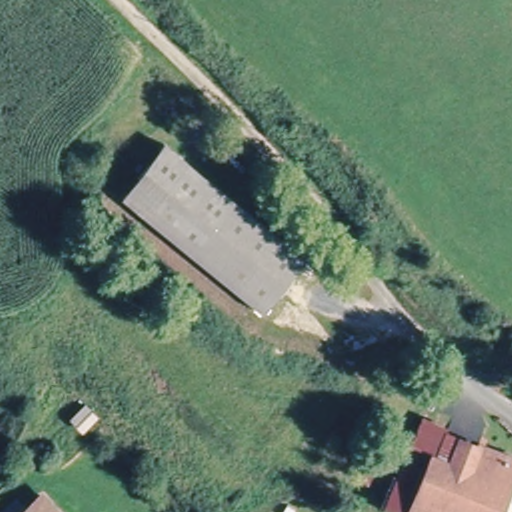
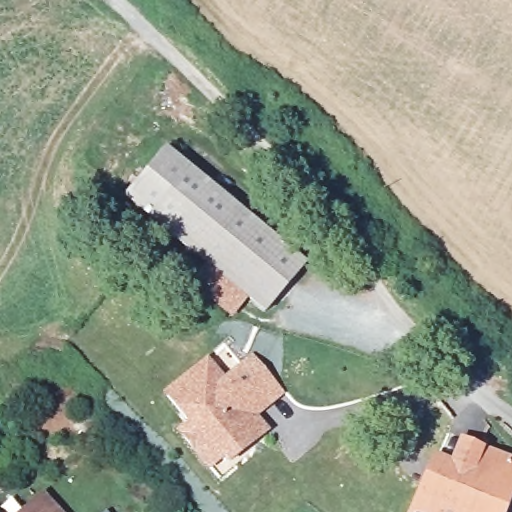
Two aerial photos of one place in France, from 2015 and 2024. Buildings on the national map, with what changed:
demolished [(91,0),(105,11),(92,30),(56,0),(91,0)]
unchanged [(157,152),(294,267),(257,311),(119,196),(157,152)]
new [(174,432),(185,424),(161,393),(206,357),(223,376),(251,354),(283,394),(258,416),(270,430),(227,465),(222,460),(206,472),(174,432)]
unchanged [(427,482),(421,480),(409,512),(386,512),(385,512),(422,422),(447,433),(445,438),(427,482)]
unchanged [(512,465),(512,497),(506,512),(409,512),(421,480),(427,482),(445,438),(460,443),(512,465)]
unchanged [(40,503),(48,512),(29,512),(40,503)]

